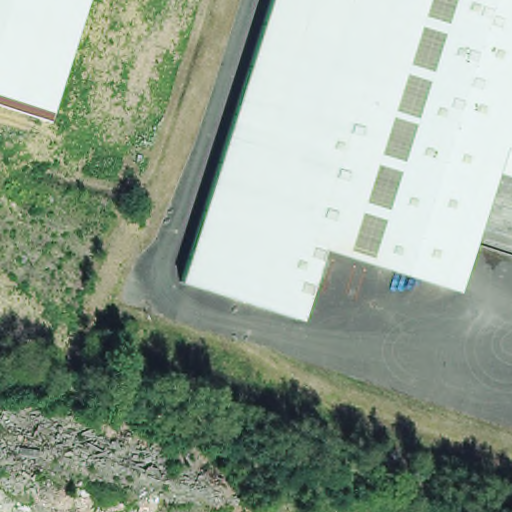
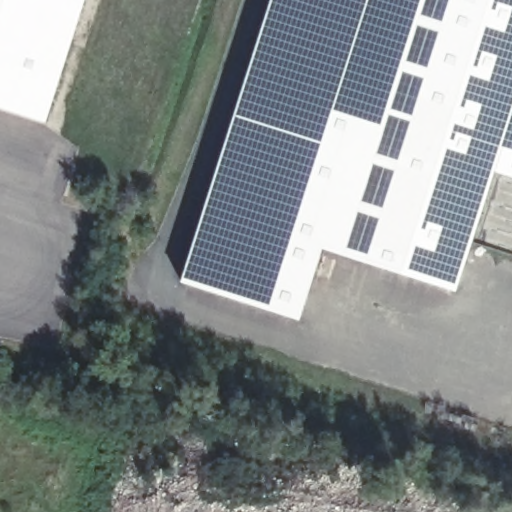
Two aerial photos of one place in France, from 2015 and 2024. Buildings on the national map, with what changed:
unchanged [(84,0),(48,115),(0,100),(0,0),(84,0)]
unchanged [(454,289),(322,250),(300,317),(291,313),(184,277),(272,0),(512,0),(512,173),(493,167),(454,289)]

